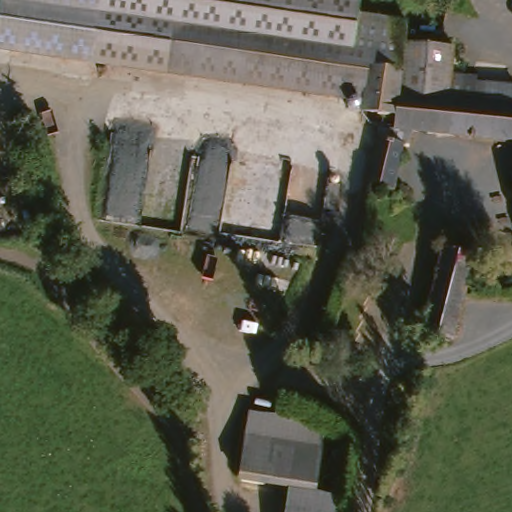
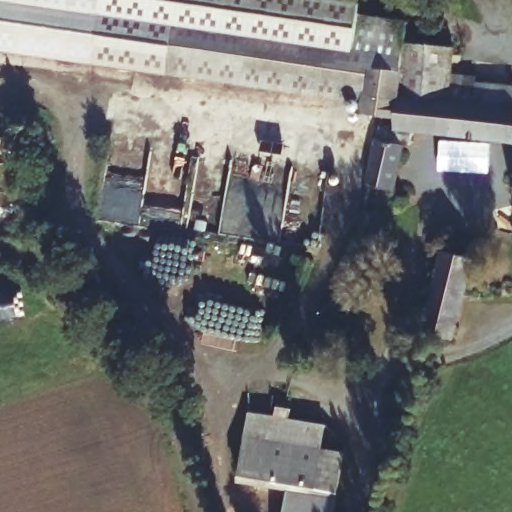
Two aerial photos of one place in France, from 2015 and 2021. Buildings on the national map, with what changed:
unchanged [(0,50),(0,0),(105,0),(94,63),(0,50)]
unchanged [(365,0),(364,10),(413,14),(411,39),(458,43),(456,66),(454,96),(400,93),(398,115),(364,112),(366,96),(94,63),(105,0),(365,0)]
unchanged [(454,96),(456,66),(474,67),(473,79),(512,83),(512,138),(397,130),(398,115),(400,93),(454,96)]
unchanged [(399,189),(373,182),(384,138),(411,143),(399,189)]
unchanged [(512,170),(512,178),(509,171),(512,170)]
unchanged [(457,339),(428,330),(441,249),(476,258),(457,339)]
unchanged [(248,413),(273,417),(276,408),(326,419),(315,492),(339,498),(337,512),(284,512),(287,490),(236,481),(248,413)]

